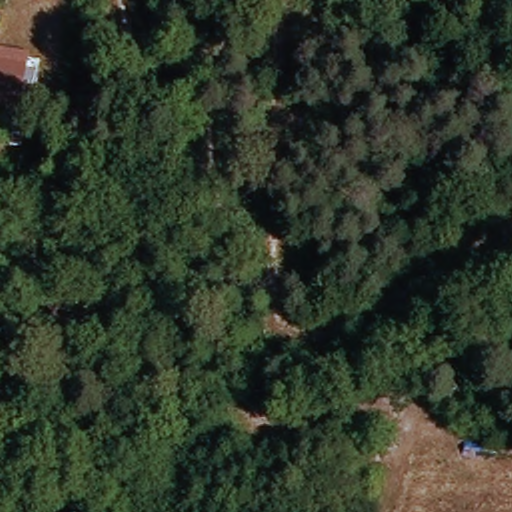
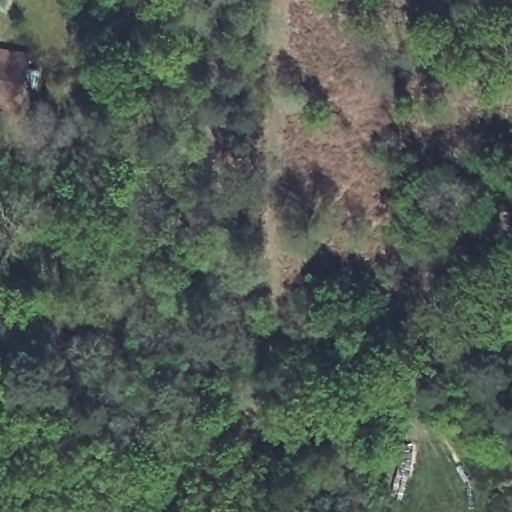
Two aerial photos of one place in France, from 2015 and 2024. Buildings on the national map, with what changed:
unchanged [(26,67),(21,97),(0,93),(0,62),(9,64),(26,67)]

